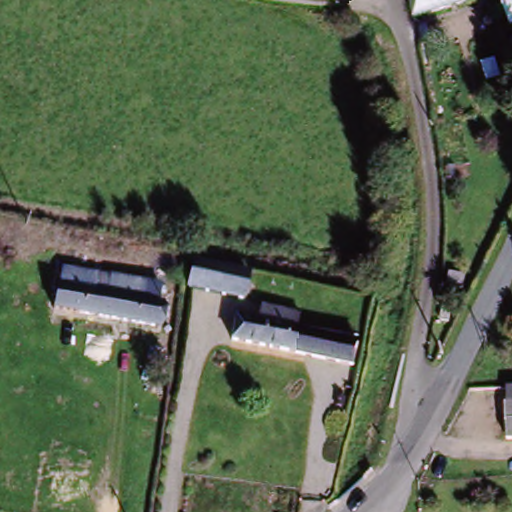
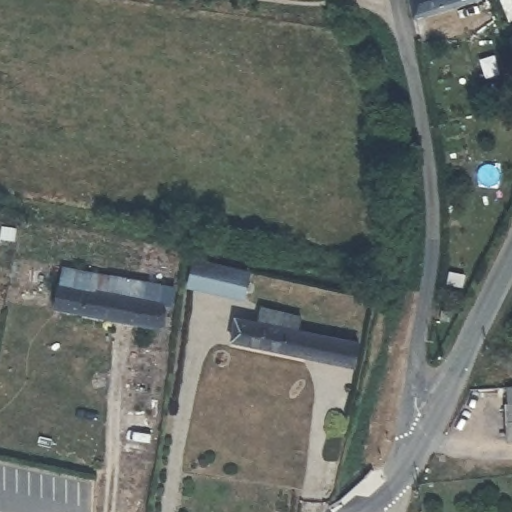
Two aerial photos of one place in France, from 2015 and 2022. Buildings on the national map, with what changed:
unchanged [(419,20),(413,0),(490,0),(419,20)]
unchanged [(247,301),(181,287),(186,263),(252,277),(247,301)]
unchanged [(154,337),(52,317),(58,292),(62,272),(94,280),(163,293),(154,337)]
unchanged [(238,349),(228,347),(235,316),(272,323),(271,332),(310,340),(314,331),(361,340),(360,350),(365,351),(361,373),(329,367),(238,349)]
unchanged [(506,403),(506,390),(512,389),(512,437),(508,437),(506,403)]

